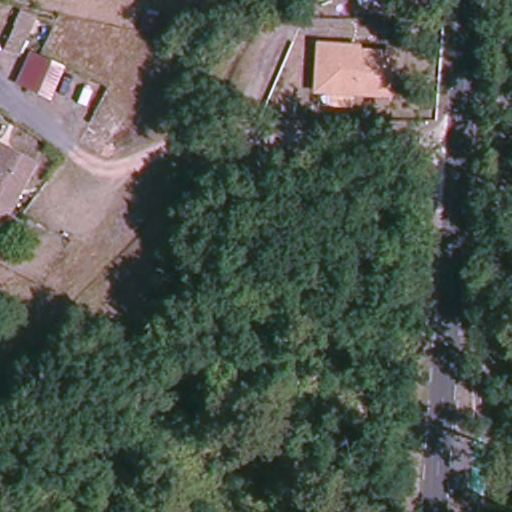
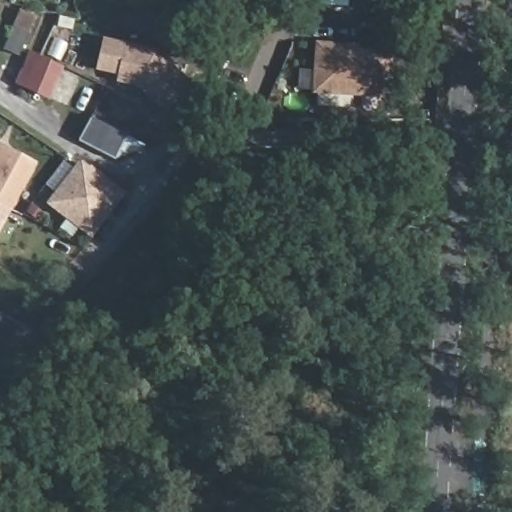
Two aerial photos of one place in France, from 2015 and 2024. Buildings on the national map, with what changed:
unchanged [(34,23),(24,46),(9,40),(19,16),(34,23)]
new [(118,74),(96,70),(104,37),(156,49),(197,87),(169,115),(136,85),(117,82),(118,74)]
unchanged [(313,94),(317,40),(362,44),(362,50),(394,52),(391,99),(313,94)]
unchanged [(25,87),(38,58),(62,69),(49,99),(25,87)]
new [(79,141),(91,119),(143,145),(114,160),(79,141)]
demolished [(80,142),(86,131),(93,119),(118,132),(112,142),(104,155),(80,142)]
unchanged [(0,203),(0,146),(34,165),(10,209),(0,203)]
new [(91,165),(126,192),(91,239),(48,203),(81,160),(89,166),(91,165)]
unchanged [(0,203),(10,209),(0,227),(0,203)]

